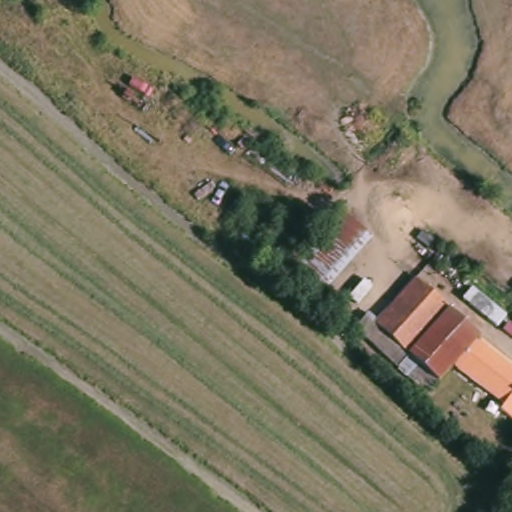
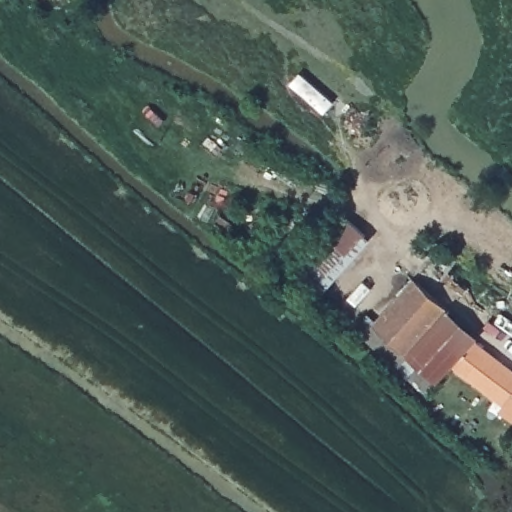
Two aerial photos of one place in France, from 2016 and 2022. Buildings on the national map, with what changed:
unchanged [(299,284),(339,224),(362,238),(320,301),(299,284)]
unchanged [(429,405),(383,374),(390,363),(360,343),(399,284),(440,312),(403,365),(438,391),(429,405)]
unchanged [(438,391),(403,365),(440,312),(475,335),(472,341),(451,371),(438,391)]
unchanged [(472,341),(512,368),(512,418),(500,410),(503,405),(451,371),(472,341)]

